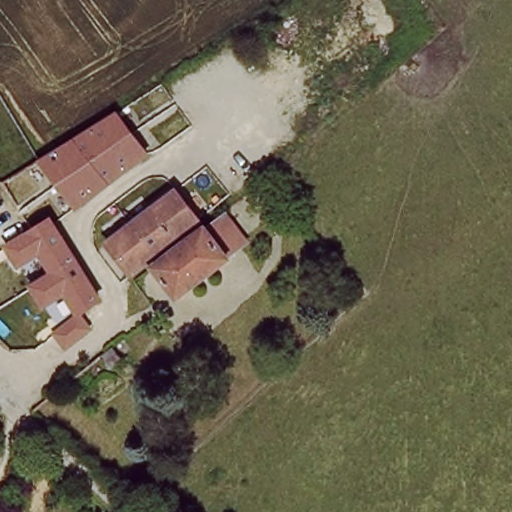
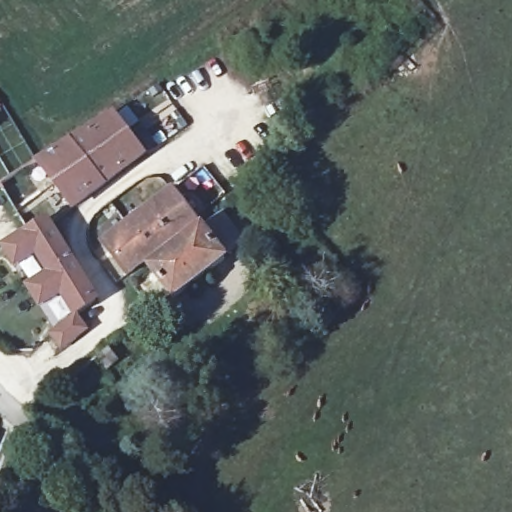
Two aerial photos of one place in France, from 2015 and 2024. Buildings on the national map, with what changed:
unchanged [(134,103),(165,150),(73,212),(32,162),(134,103)]
unchanged [(190,184),(212,220),(130,278),(103,241),(190,184)]
unchanged [(103,300),(71,317),(22,239),(53,215),(103,300)]
unchanged [(204,237),(227,273),(171,310),(150,276),(204,237)]

